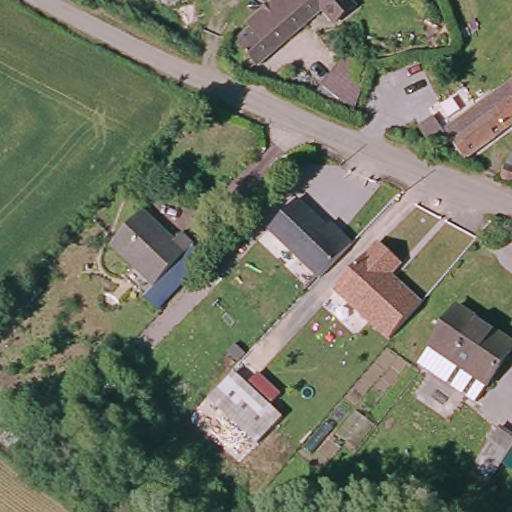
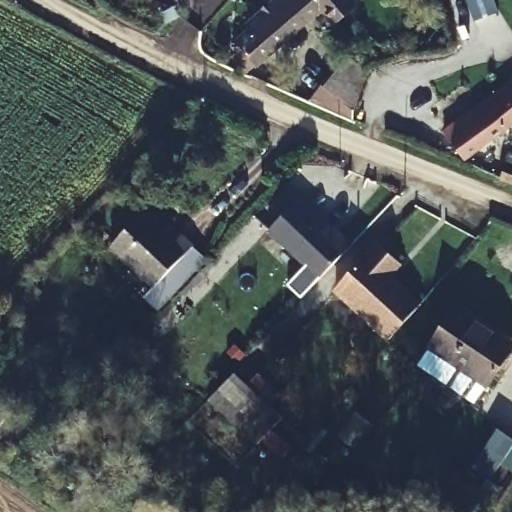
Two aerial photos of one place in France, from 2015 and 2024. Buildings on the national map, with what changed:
unchanged [(349,0),(353,4),(340,19),(336,22),(321,10),(250,79),(224,67),(264,31),(258,25),(286,0),(349,0)]
unchanged [(380,79),(356,115),(346,107),(336,117),(311,100),(344,54),(380,79)]
unchanged [(452,135),(444,123),(478,101),(482,106),(501,94),(506,100),(512,95),(512,127),(469,157),(464,155),(452,135)]
unchanged [(301,278),(249,234),(276,204),(313,237),(316,234),(331,246),(301,280),(301,278)]
unchanged [(138,222),(170,250),(179,240),(206,262),(190,279),(159,311),(148,300),(156,291),(111,253),(138,222)]
unchanged [(424,302),(388,341),(333,290),(376,242),(403,267),(394,276),(424,302)]
unchanged [(512,335),(512,352),(484,389),(429,354),(464,303),(512,335)]
unchanged [(281,395),(271,405),(283,418),(256,445),(210,400),(235,374),(247,385),(259,372),(281,395)]
unchanged [(504,422),(512,428),(512,437),(494,464),(479,455),(504,422)]

